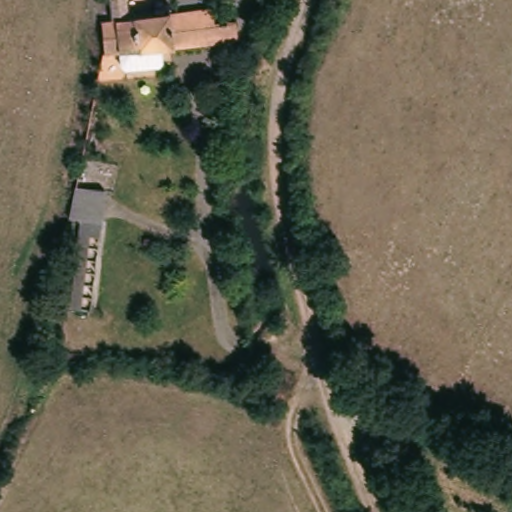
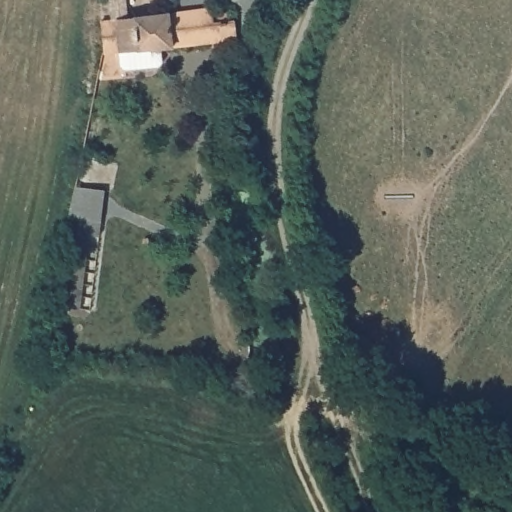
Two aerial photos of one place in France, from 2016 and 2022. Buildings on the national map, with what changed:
unchanged [(115,19),(111,0),(131,0),(134,15),(206,4),(210,17),(231,17),(235,39),(103,56),(99,21),(115,19)]
unchanged [(111,187),(106,218),(86,215),(69,216),(72,183),(111,187)]
unchanged [(106,218),(104,234),(94,233),(83,307),(73,306),(86,215),(106,218)]

